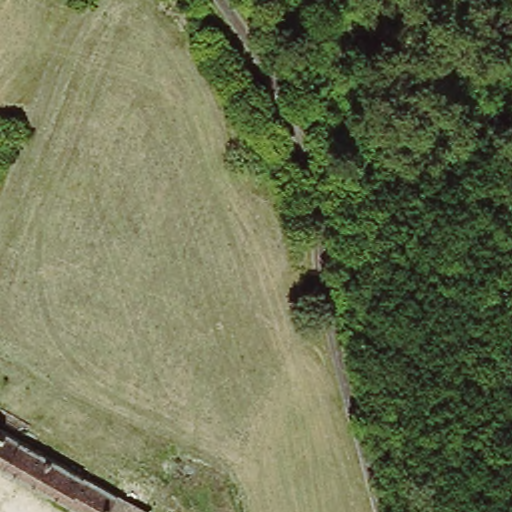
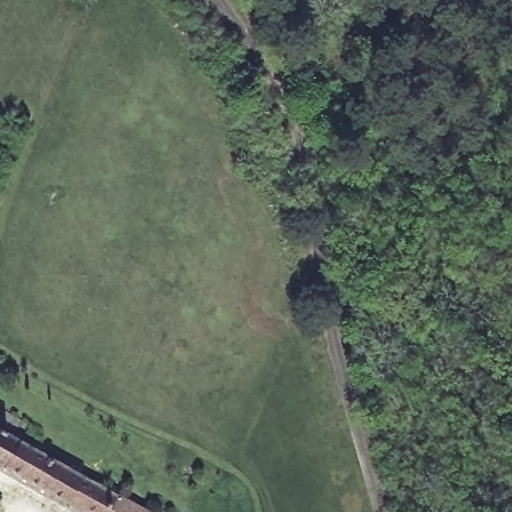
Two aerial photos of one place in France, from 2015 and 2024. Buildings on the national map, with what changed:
unchanged [(0,463),(0,424),(146,510),(145,512),(85,512),(0,463)]

